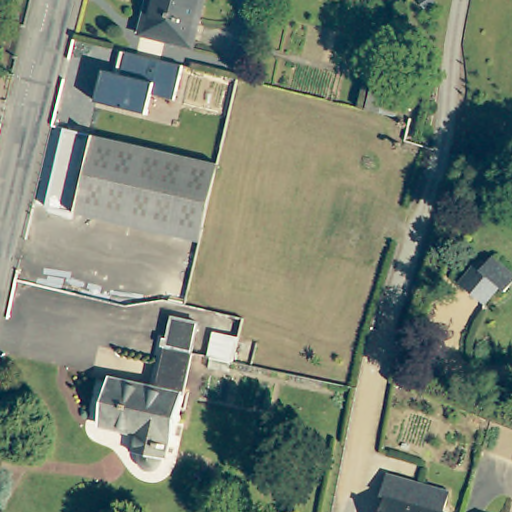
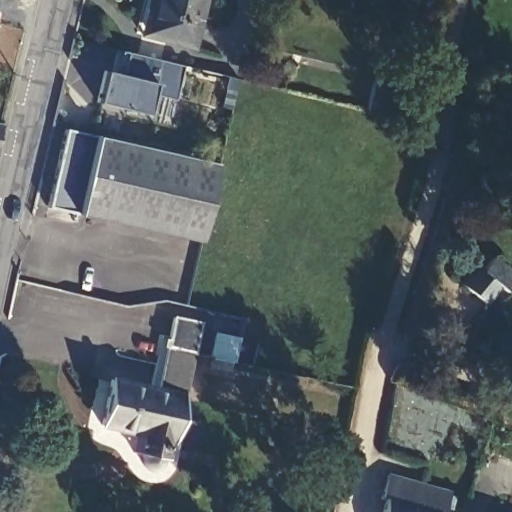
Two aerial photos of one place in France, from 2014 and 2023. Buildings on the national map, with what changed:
unchanged [(163,32),(144,28),(150,0),(203,0),(192,46),(161,40),(163,32)]
unchanged [(149,92),(144,115),(94,102),(103,72),(116,75),(119,51),(127,54),(181,65),(172,99),(149,92)]
unchanged [(372,81),(386,85),(385,89),(399,93),(393,117),(365,110),(372,81)]
unchanged [(202,229),(81,200),(78,214),(47,206),(65,129),(217,164),(202,229)]
unchanged [(199,241),(78,214),(81,200),(202,229),(199,241)]
unchanged [(475,265),(480,268),(490,256),(512,274),(512,281),(504,290),(498,285),(483,302),(459,283),(475,265)]
unchanged [(133,431),(98,424),(108,378),(157,388),(172,316),(197,321),(191,353),(172,440),(169,439),(165,458),(162,457),(162,459),(161,462),(159,465),(156,467),(152,468),(149,468),(145,467),(142,465),(140,462),(139,459),(139,455),(140,452),(139,452),(129,450),(133,431)]
unchanged [(448,491),(443,512),(382,512),(386,497),(381,496),(387,474),(448,491)]

